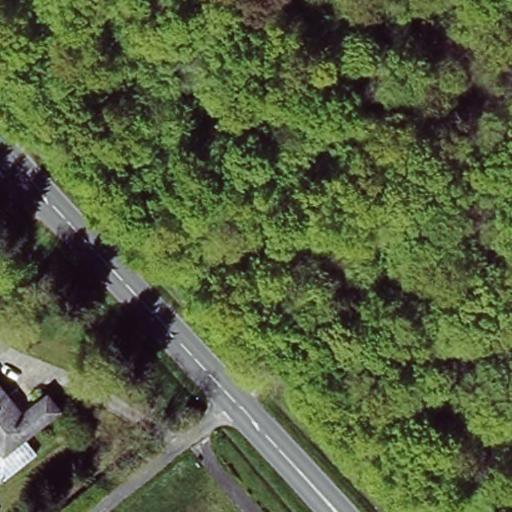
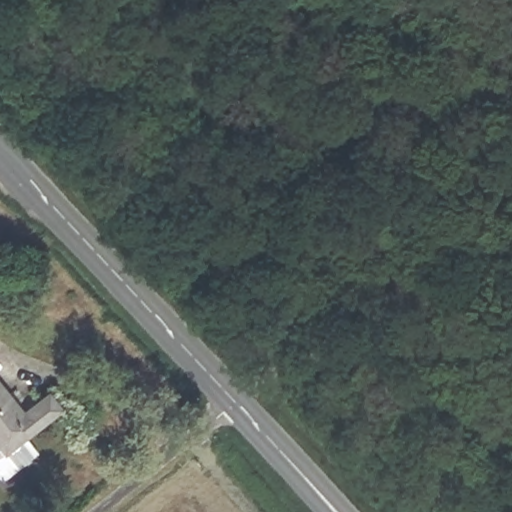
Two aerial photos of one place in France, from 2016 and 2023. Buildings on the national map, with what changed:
unchanged [(52,386),(63,400),(29,429),(40,444),(5,472),(0,466),(0,373),(27,405),(52,386)]

